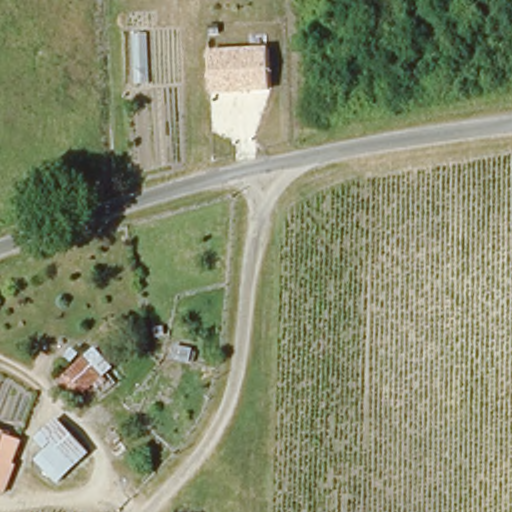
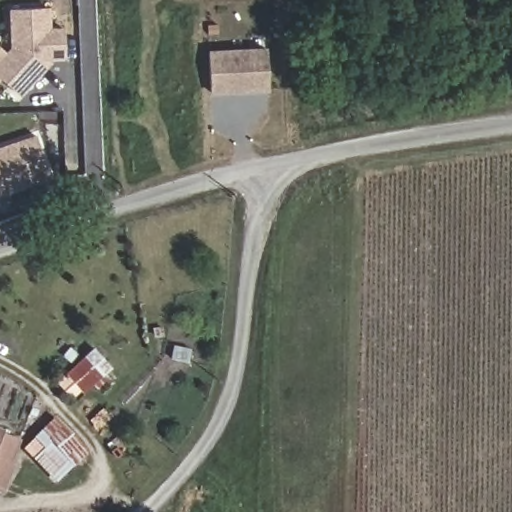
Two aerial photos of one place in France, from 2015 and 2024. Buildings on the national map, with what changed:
new [(5,52),(10,47),(8,9),(50,8),(51,27),(63,26),(65,57),(52,57),(52,64),(21,96),(1,79),(0,81),(0,47),(5,52)]
unchanged [(269,90),(209,92),(209,50),(267,47),(269,90)]
new [(36,136),(50,176),(0,192),(0,148),(36,136)]
unchanged [(91,344),(114,363),(76,407),(64,397),(55,388),(69,371),(91,344)]
unchanged [(36,460),(46,450),(35,438),(54,417),(88,453),(55,482),(36,460)]
unchanged [(0,498),(0,433),(23,443),(0,498)]

